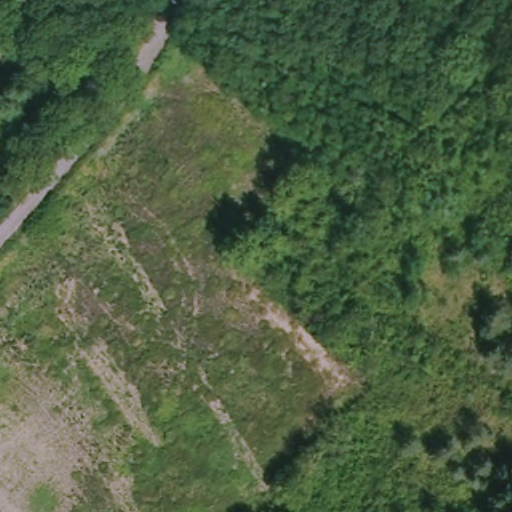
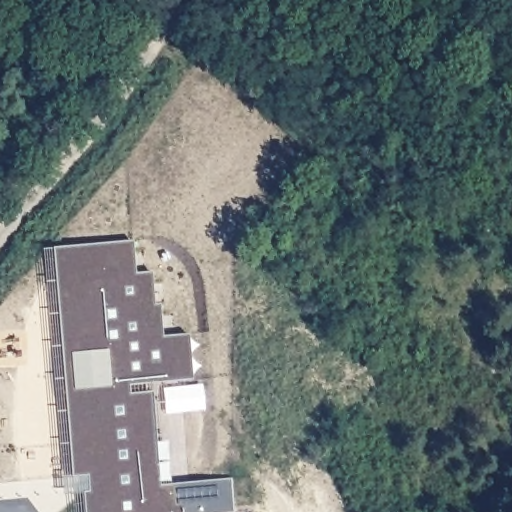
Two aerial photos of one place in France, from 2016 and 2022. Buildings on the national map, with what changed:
new [(130,242),(134,273),(149,272),(153,305),(158,304),(161,336),(188,333),(193,377),(151,382),(161,485),(232,478),(236,511),(227,512),(85,512),(83,492),(71,493),(61,379),(48,249),(130,242)]

